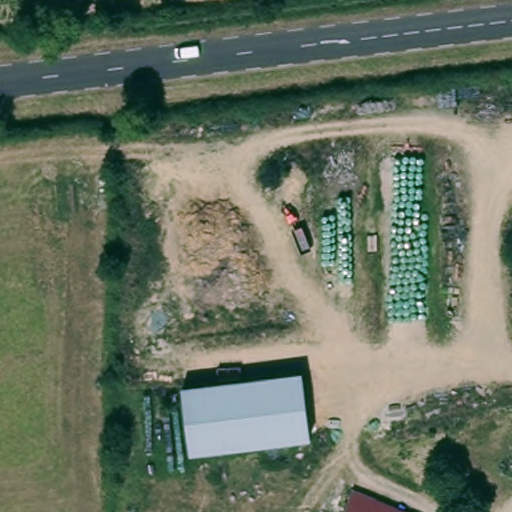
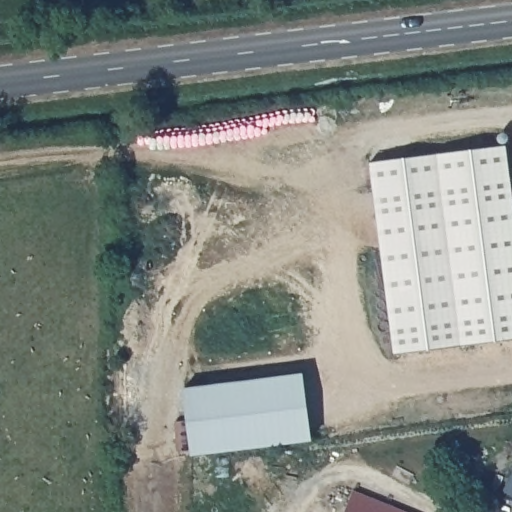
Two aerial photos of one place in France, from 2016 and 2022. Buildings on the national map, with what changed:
new [(370,161),(506,144),(512,177),(512,338),(395,356),(370,161)]
unchanged [(303,374),(311,439),(192,454),(191,454),(183,389),(303,374)]

